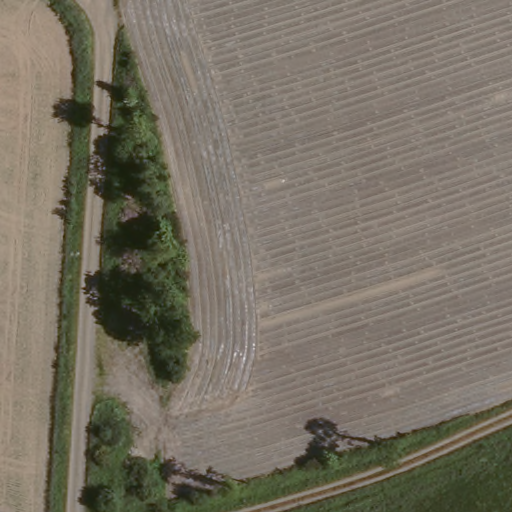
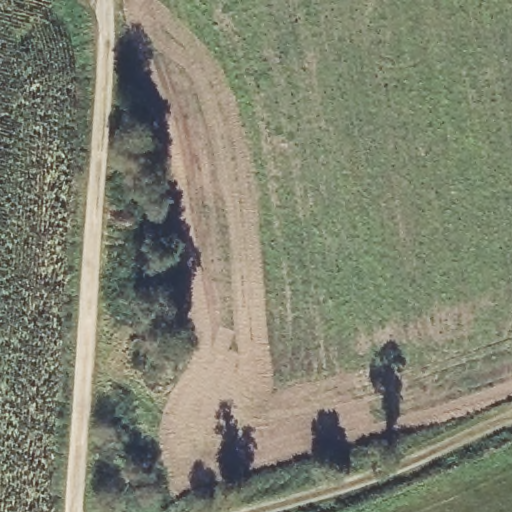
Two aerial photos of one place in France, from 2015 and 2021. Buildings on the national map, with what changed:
[]

